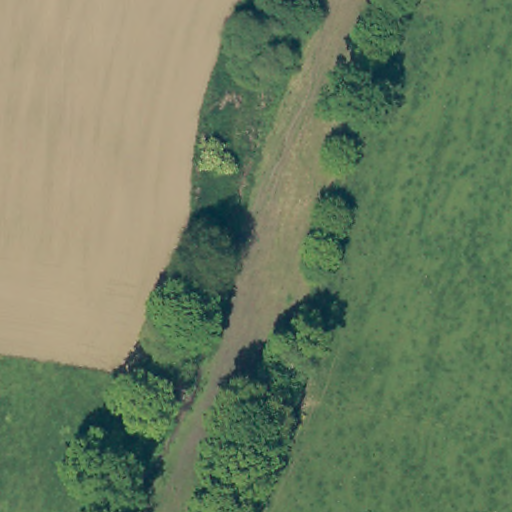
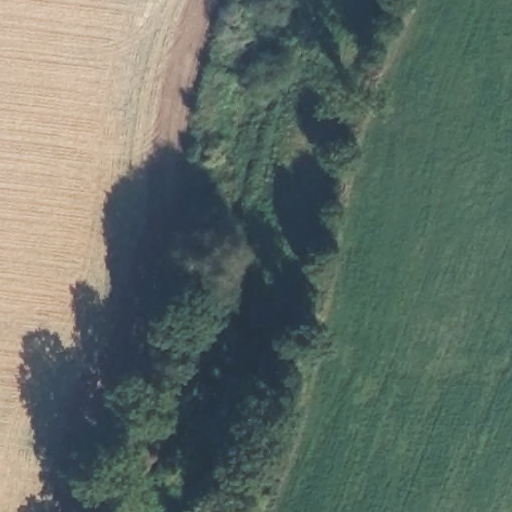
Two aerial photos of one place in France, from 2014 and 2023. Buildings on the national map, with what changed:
[]

